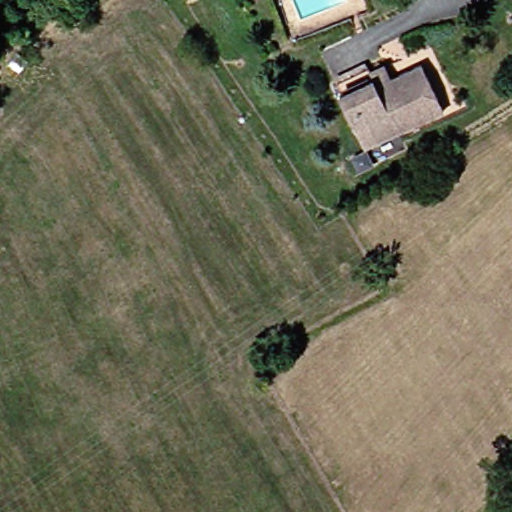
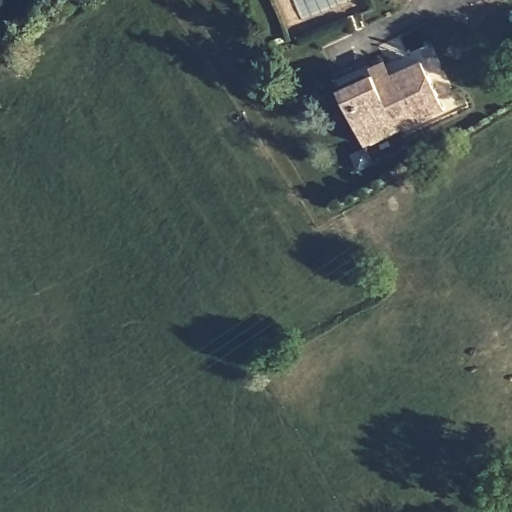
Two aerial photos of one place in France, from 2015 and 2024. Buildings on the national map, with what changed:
unchanged [(365,71),(367,75),(424,50),(452,115),(393,140),(391,135),(358,149),(331,86),(365,71)]

